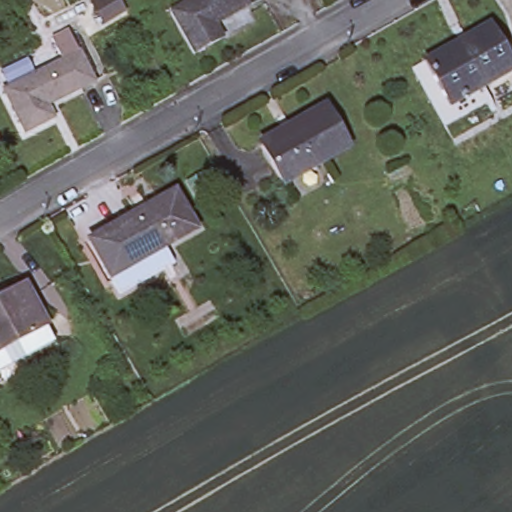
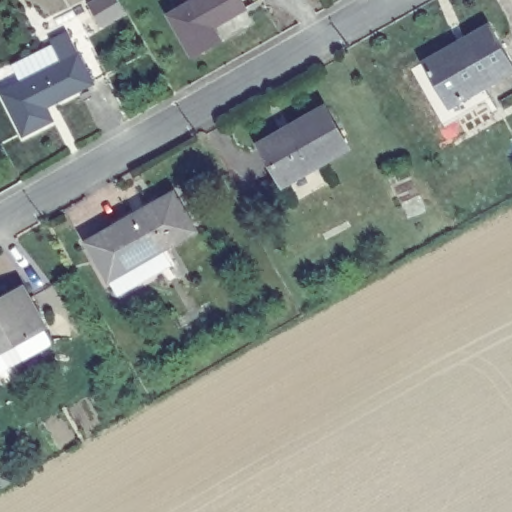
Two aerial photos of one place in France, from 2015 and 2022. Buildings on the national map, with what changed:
unchanged [(127,15),(106,27),(95,7),(108,0),(119,0),(127,15)]
unchanged [(218,32),(217,31),(188,46),(165,5),(174,0),(243,0),(250,14),(218,32)]
unchanged [(47,103),(55,117),(26,132),(0,81),(0,63),(52,36),(41,14),(57,6),(95,79),(47,103)]
unchanged [(512,63),(492,75),(499,87),(452,113),(420,56),(498,12),(512,37),(512,63)]
unchanged [(264,140),(292,124),(290,121),(327,100),(350,141),(285,177),(264,140)]
unchanged [(198,222),(168,240),(177,257),(122,288),(92,234),(178,186),(198,222)]
unchanged [(27,281),(55,335),(0,364),(0,296),(27,281)]

